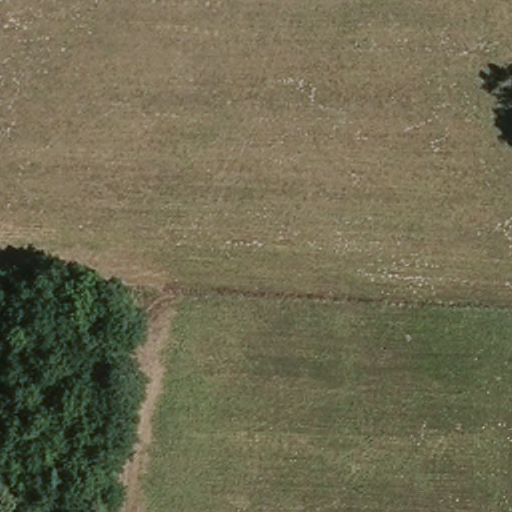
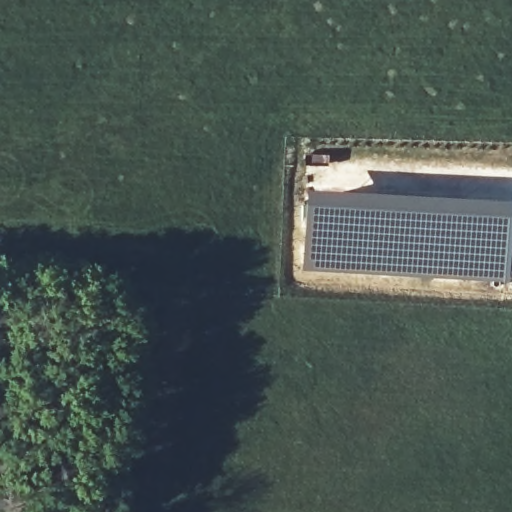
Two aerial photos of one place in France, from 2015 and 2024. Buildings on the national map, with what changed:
new [(508,281),(303,269),(308,186),(512,198),(508,281)]

